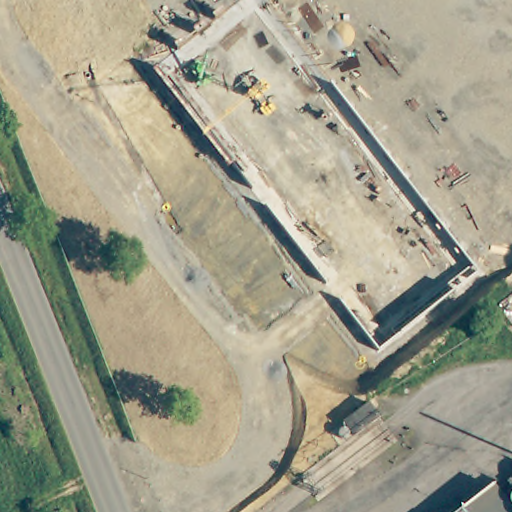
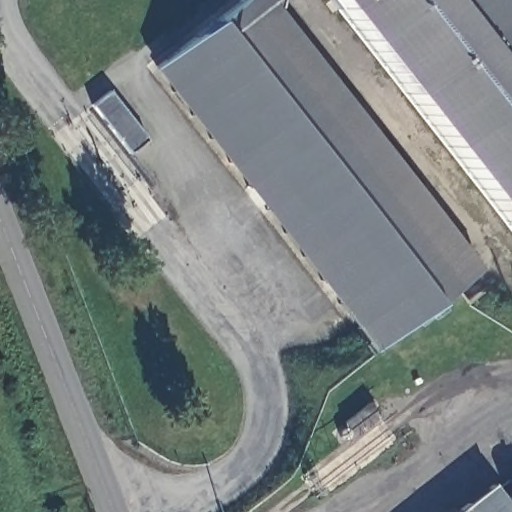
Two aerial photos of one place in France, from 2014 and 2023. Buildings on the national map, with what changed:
new [(484,267),(376,351),(155,67),(242,0),(272,0),(484,267)]
new [(512,7),(512,229),(333,0),(507,0),(512,7)]
new [(111,90),(149,140),(131,153),(92,105),(111,90)]
unchanged [(368,401),(379,416),(351,436),(341,421),(368,401)]
unchanged [(479,512),(465,495),(497,470),(512,490),(512,512),(479,512)]
unchanged [(479,512),(442,512),(465,495),(479,512)]
unchanged [(441,512),(420,512),(433,502),(441,512)]

